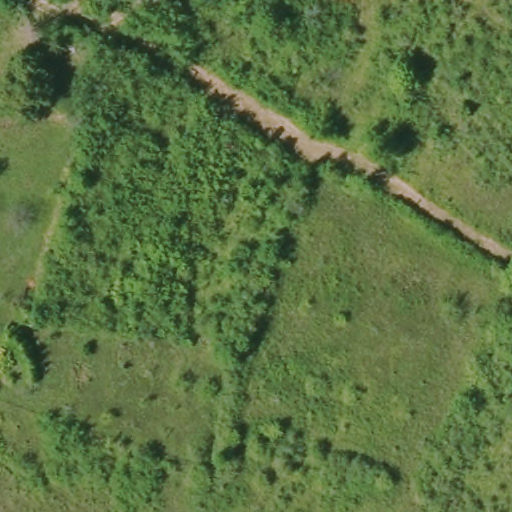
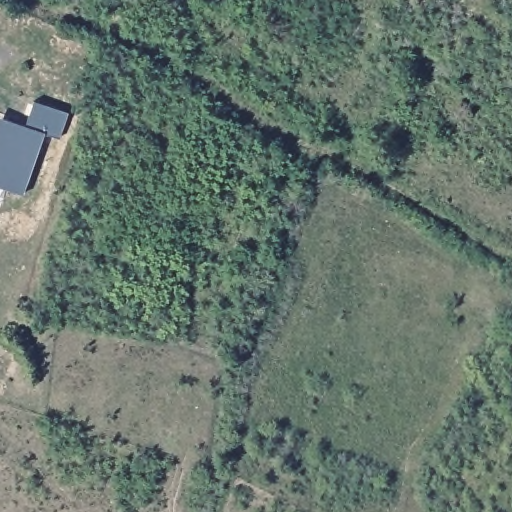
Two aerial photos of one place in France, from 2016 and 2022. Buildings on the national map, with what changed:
new [(59,138),(46,132),(24,195),(0,186),(0,117),(27,127),(34,103),(67,114),(59,138)]

